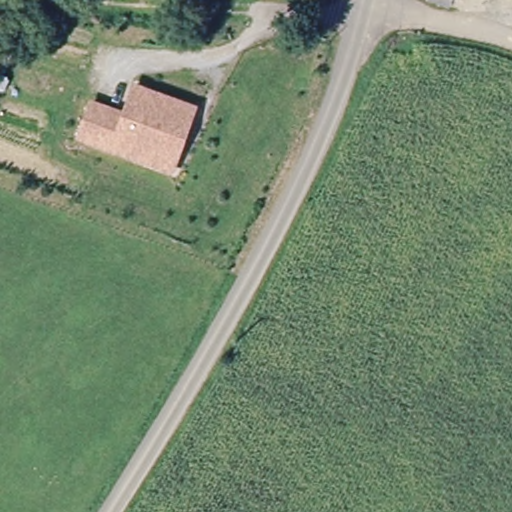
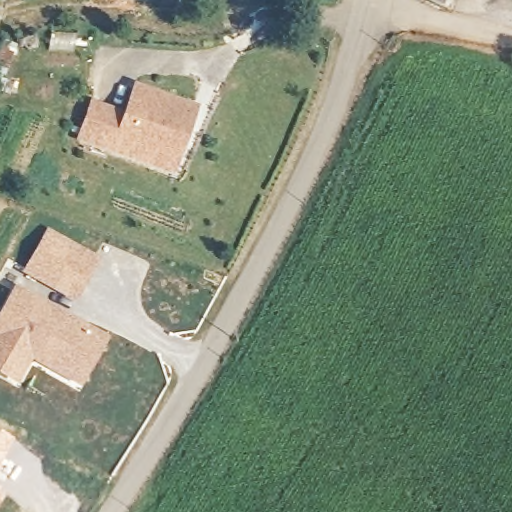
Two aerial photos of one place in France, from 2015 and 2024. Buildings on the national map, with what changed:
unchanged [(447,9),(430,0),(452,0),(447,9)]
unchanged [(75,143),(90,101),(120,110),(131,86),(198,110),(174,175),(75,143)]
new [(50,236),(95,261),(75,298),(30,273),(50,236)]
new [(0,372),(0,323),(17,292),(102,339),(79,382),(55,369),(31,356),(17,381),(0,372)]
new [(0,496),(0,489),(2,491),(0,496)]

